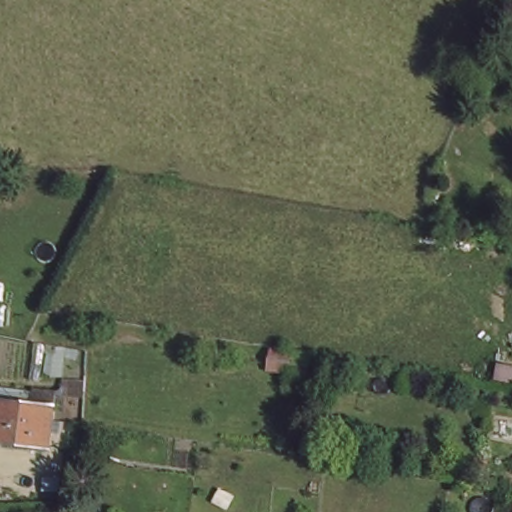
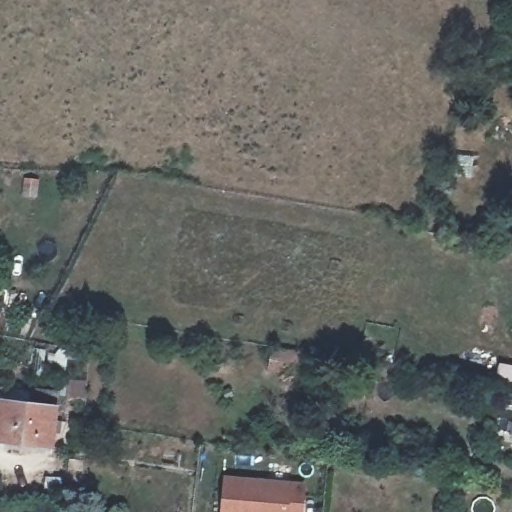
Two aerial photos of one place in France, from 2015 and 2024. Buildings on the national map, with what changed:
unchanged [(50,446),(0,443),(0,404),(53,407),(50,446)]
new [(292,481),(305,482),(302,512),(219,512),(222,476),(292,481)]

